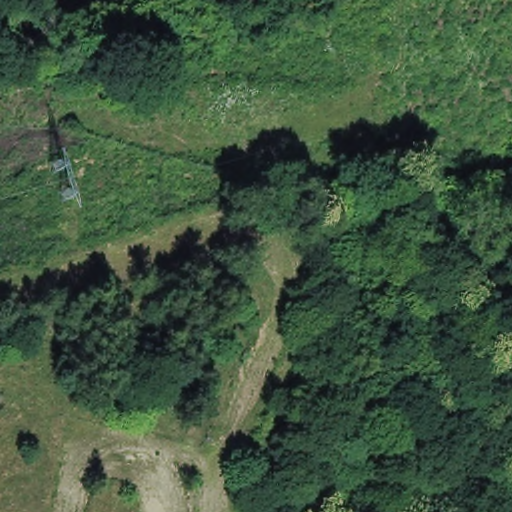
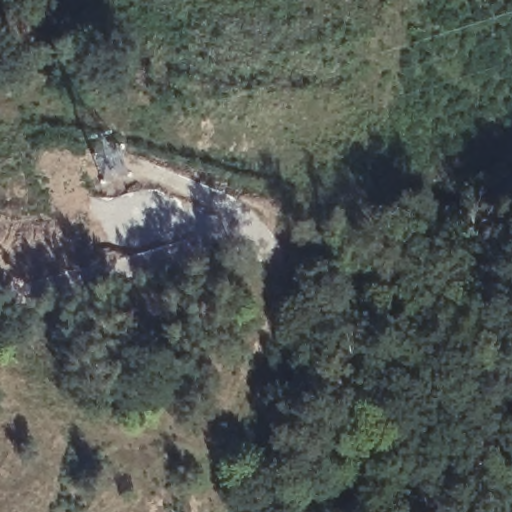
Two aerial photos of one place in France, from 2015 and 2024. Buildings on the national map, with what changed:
[]

